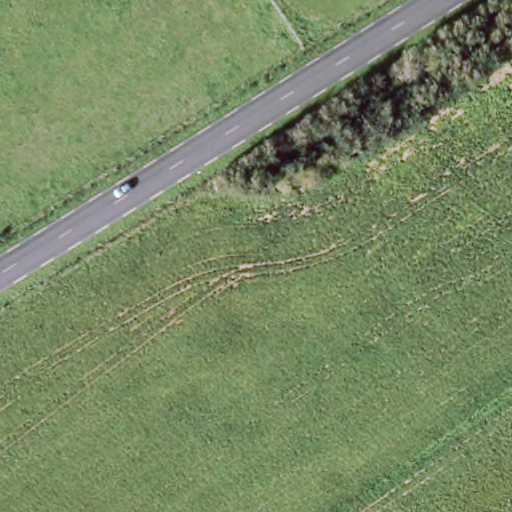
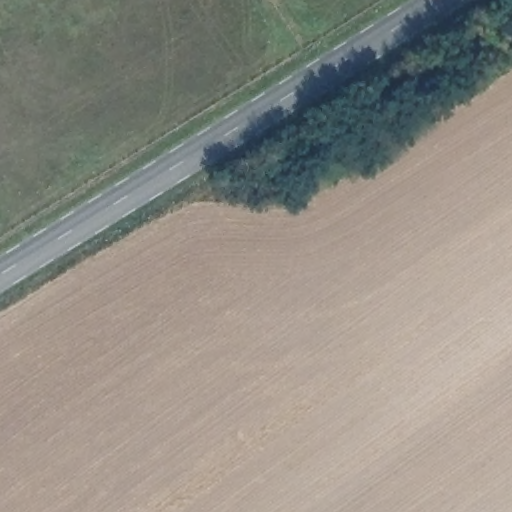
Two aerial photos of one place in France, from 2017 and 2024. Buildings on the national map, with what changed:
unchanged [(429,59),(441,82),(424,93),(417,80),(409,84),(403,74),(429,59)]

